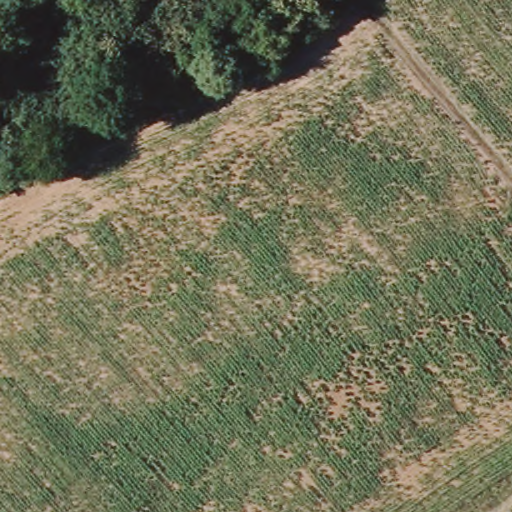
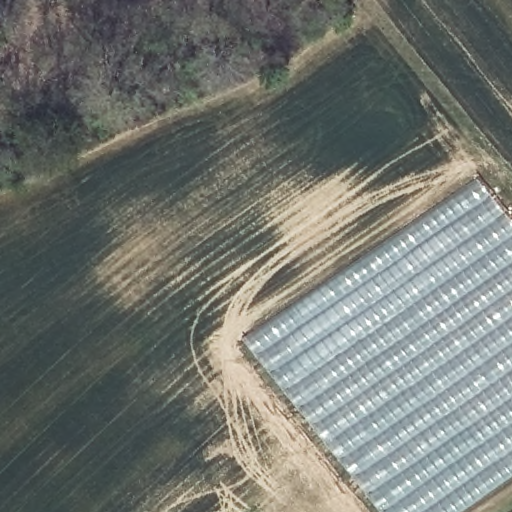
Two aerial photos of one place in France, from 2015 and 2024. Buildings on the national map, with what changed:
new [(313,288),(477,180),(512,223),(512,478),(463,512),(379,512),(242,339),(313,288)]

